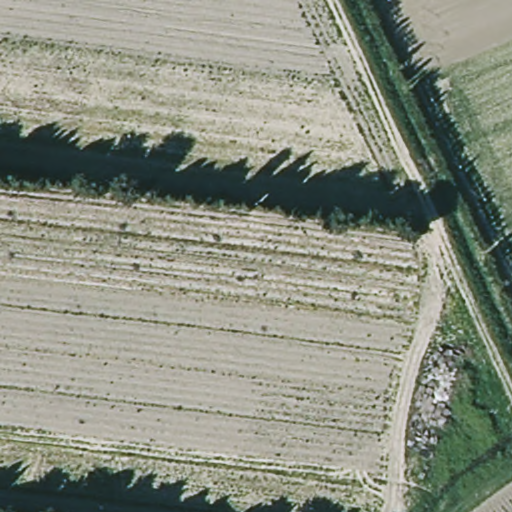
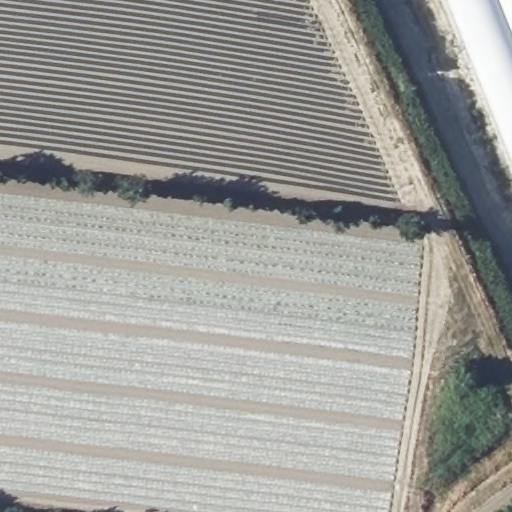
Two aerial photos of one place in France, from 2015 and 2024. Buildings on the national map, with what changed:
new [(512,170),(443,0),(512,0),(512,170)]

